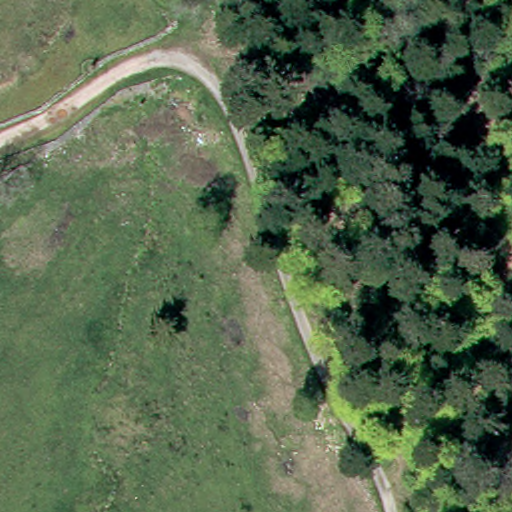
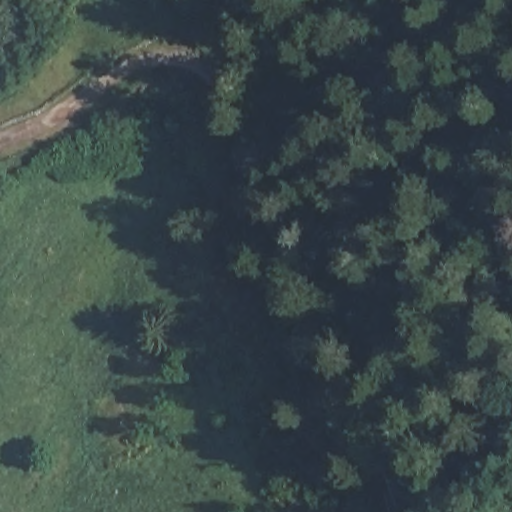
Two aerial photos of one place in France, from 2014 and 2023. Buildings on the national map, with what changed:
[]

